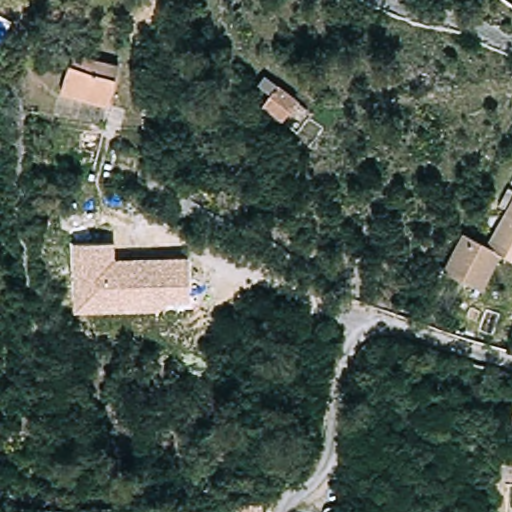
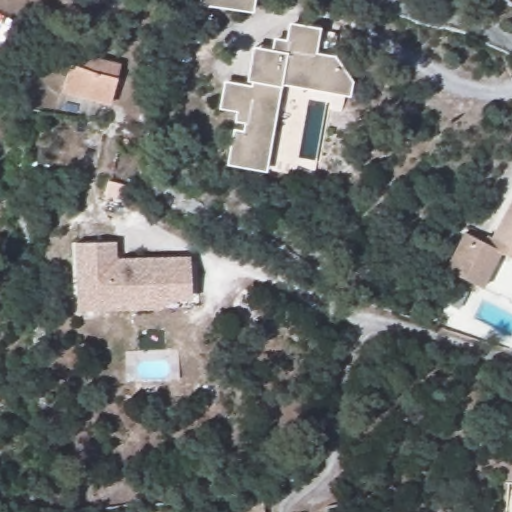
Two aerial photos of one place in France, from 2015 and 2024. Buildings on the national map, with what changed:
new [(255,0),(253,14),(197,5),(198,0),(255,0)]
new [(218,110),(223,81),(249,85),(250,84),(246,82),(252,47),(270,50),(273,38),(285,40),(289,23),(319,28),(315,53),(335,56),(351,82),(349,96),(281,85),(280,89),(265,173),(225,166),(231,130),(242,130),(243,124),(233,122),(235,112),(218,110)]
unchanged [(75,59),(79,46),(124,57),(114,99),(111,98),(107,116),(57,107),(63,86),(65,87),(74,58),(75,59)]
demolished [(285,122),(263,105),(272,94),(257,81),(267,71),(299,101),(285,122)]
unchanged [(463,234),(481,243),(486,245),(506,210),(503,208),(499,206),(508,189),(512,191),(512,260),(502,255),(483,291),(459,279),(443,271),(463,234)]
unchanged [(186,258),(188,300),(169,302),(163,311),(77,310),(77,244),(116,244),(117,259),(186,258)]
unchanged [(265,502),(265,512),(240,512),(240,502),(265,502)]

